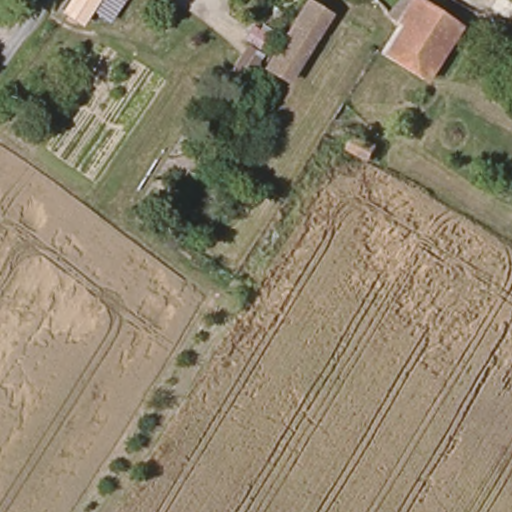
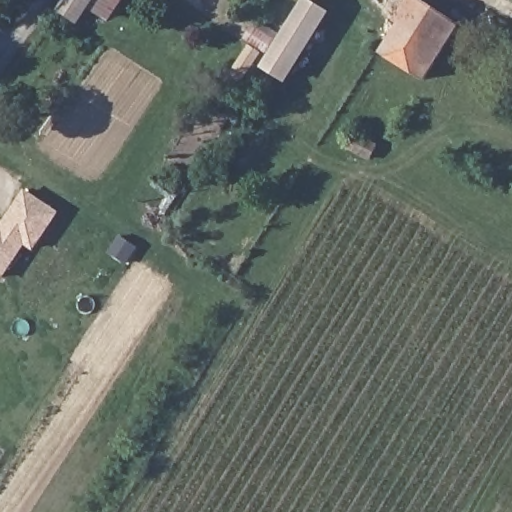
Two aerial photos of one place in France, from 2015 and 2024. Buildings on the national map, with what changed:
unchanged [(126,0),(110,25),(91,14),(80,30),(59,16),(70,0),(126,0)]
unchanged [(396,31),(393,26),(370,0),(413,0),(432,12),(440,6),(452,15),(448,24),(460,32),(450,47),(425,86),(383,58),(396,31)]
demolished [(479,5),(481,0),(512,0),(512,25),(479,5)]
unchanged [(291,81),(270,67),(314,1),(334,16),(306,59),(291,81)]
unchanged [(251,38),(262,22),(282,34),(272,52),(251,38)]
unchanged [(234,77),(249,55),(255,46),(265,54),(260,62),(245,85),(234,77)]
unchanged [(350,150),(357,136),(376,146),(369,161),(350,150)]
new [(23,240),(0,275),(0,224),(23,190),(55,210),(31,246),(23,240)]

